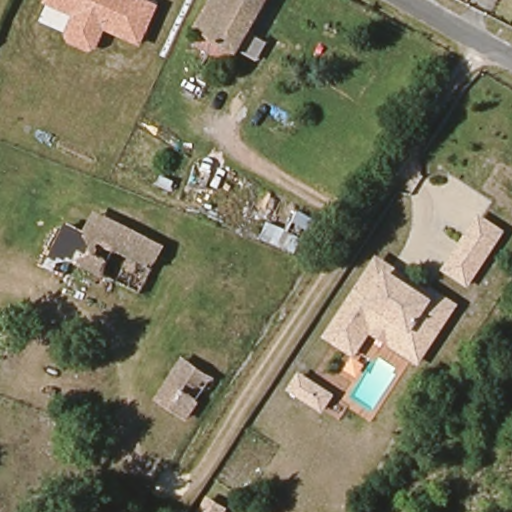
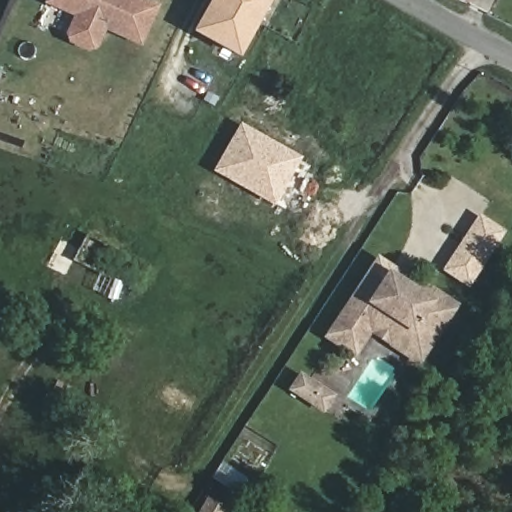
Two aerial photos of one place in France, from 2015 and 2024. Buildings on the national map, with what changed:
unchanged [(158,5),(141,46),(105,30),(98,50),(90,53),(67,43),(64,35),(71,16),(43,3),(45,0),(146,0),(158,5)]
unchanged [(236,60),(185,31),(203,0),(264,0),(268,2),(236,60)]
demolished [(268,2),(264,0),(270,0),(268,2)]
new [(273,206),(211,171),(240,124),(300,159),(273,206)]
unchanged [(468,290),(439,271),(476,213),(505,231),(468,290)]
unchanged [(159,251),(148,272),(108,250),(84,237),(86,232),(95,214),(159,251)]
unchanged [(97,275),(86,269),(79,283),(44,266),(66,221),(86,232),(84,237),(108,250),(97,275)]
unchanged [(377,256),(457,304),(417,365),(370,334),(354,358),(321,337),(377,256)]
unchanged [(215,380),(186,422),(155,401),(182,359),(215,380)]
unchanged [(285,391),(298,370),(334,395),(321,415),(285,391)]

